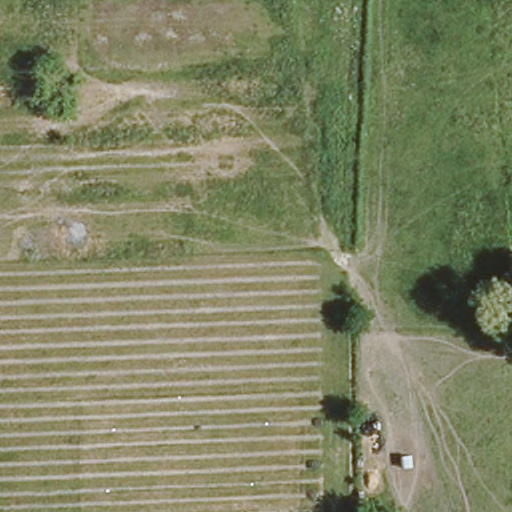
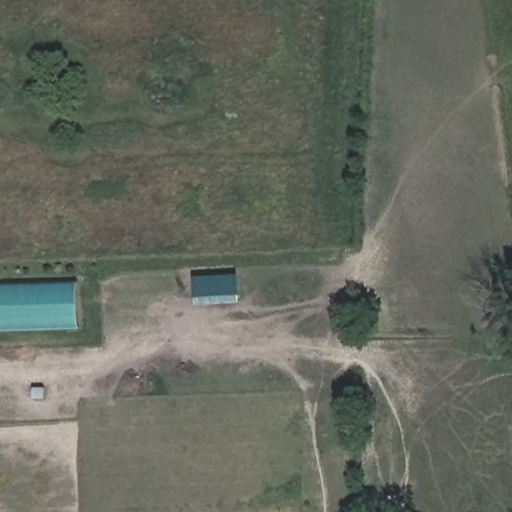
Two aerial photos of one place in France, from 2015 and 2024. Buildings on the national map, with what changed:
new [(78,330),(0,332),(0,285),(76,282),(78,330)]

